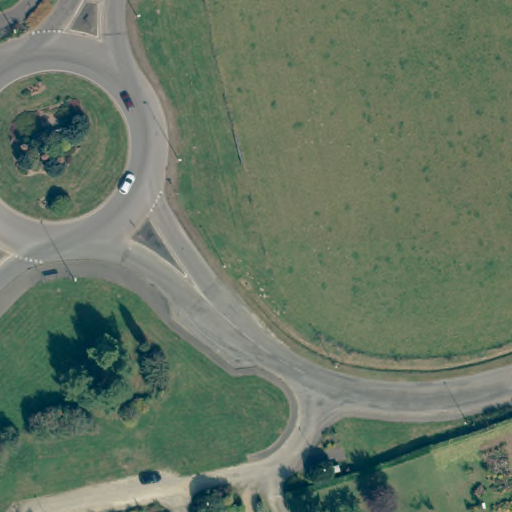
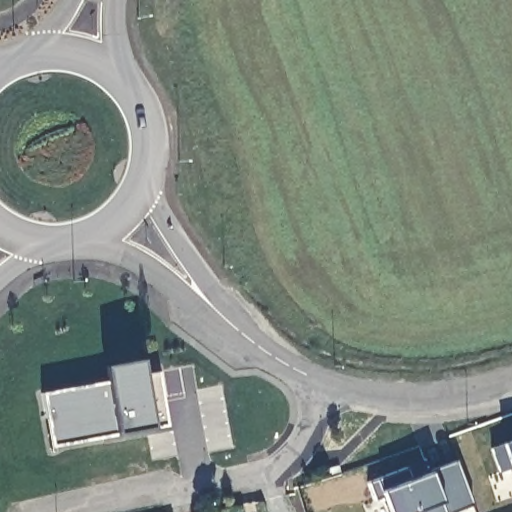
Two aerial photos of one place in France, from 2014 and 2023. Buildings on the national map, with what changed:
new [(40,395),(105,382),(101,367),(137,360),(140,376),(155,372),(165,425),(151,427),(115,433),(52,445),(40,395)]
new [(490,447),(512,440),(512,471),(500,475),(490,447)]
new [(471,505),(454,512),(417,512),(417,511),(415,512),(389,512),(382,496),(375,500),(368,482),(375,480),(405,468),(412,480),(429,474),(455,461),(471,505)]

